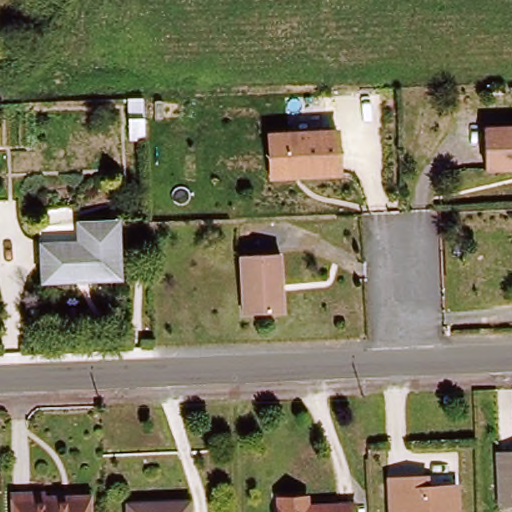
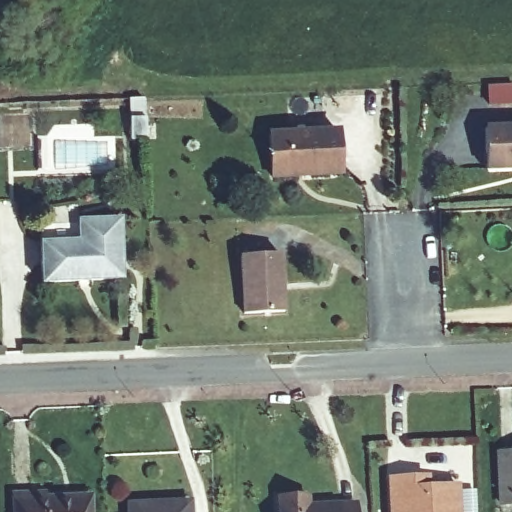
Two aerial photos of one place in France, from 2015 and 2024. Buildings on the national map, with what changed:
unchanged [(125,137),(124,116),(141,116),(141,137),(125,137)]
unchanged [(492,127),(512,126),(512,173),(494,173),(492,127)]
unchanged [(339,128),(343,174),(271,176),(268,131),(339,128)]
unchanged [(46,279),(45,240),(83,239),(83,218),(128,217),(128,277),(46,279)]
unchanged [(236,315),(233,257),(274,256),(276,313),(236,315)]
unchanged [(506,451),(512,451),(512,501),(507,501),(506,451)]
unchanged [(394,483),(440,483),(440,490),(466,491),(466,512),(396,512),(394,483)]
unchanged [(15,493),(49,492),(49,496),(95,496),(95,512),(16,512),(15,493)]
unchanged [(286,497),(316,496),(316,507),(358,506),(358,512),(287,512),(286,497)]
unchanged [(138,505),(193,503),(193,512),(138,512),(138,505)]

